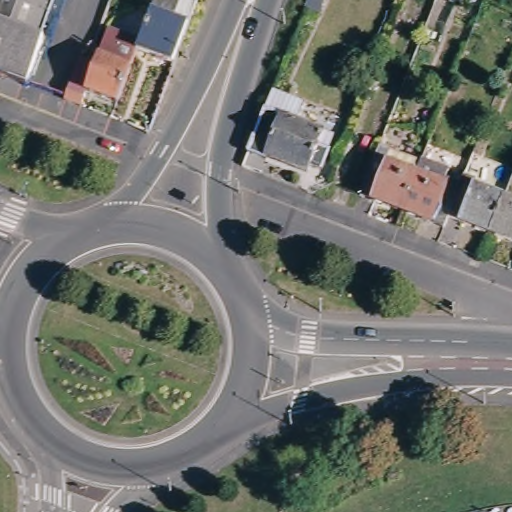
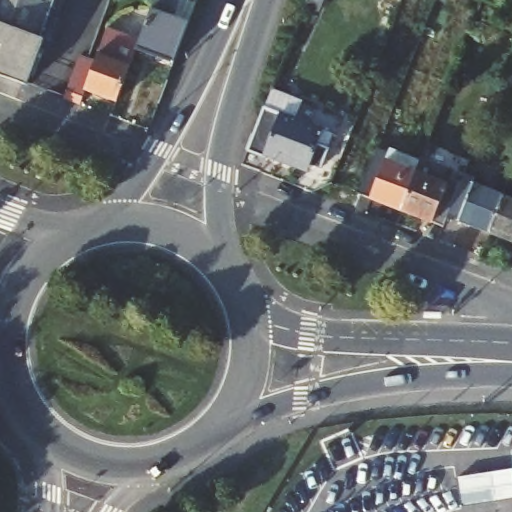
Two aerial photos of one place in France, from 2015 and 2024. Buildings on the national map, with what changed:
unchanged [(34,39),(38,41),(32,59),(27,72),(21,87),(0,79),(0,0),(48,0),(34,39)]
unchanged [(306,0),(320,0),(315,13),(303,8),(306,0)]
unchanged [(102,31),(134,42),(145,11),(184,25),(170,64),(130,50),(124,67),(111,103),(80,92),(75,105),(74,107),(67,105),(57,101),(72,64),(82,67),(87,70),(92,56),(102,31)]
unchanged [(265,104),(322,124),(316,141),(328,145),(320,164),(310,159),(307,167),(266,151),(265,153),(249,148),(265,104)]
unchanged [(507,198),(507,199),(493,234),(451,218),(447,227),(405,210),(365,195),(382,152),(394,157),(395,151),(424,162),(426,155),(469,171),(467,176),(480,181),(477,186),(507,198)]
unchanged [(512,241),(493,234),(507,199),(512,200),(512,241)]
new [(457,479),(512,471),(512,501),(461,509),(457,479)]

